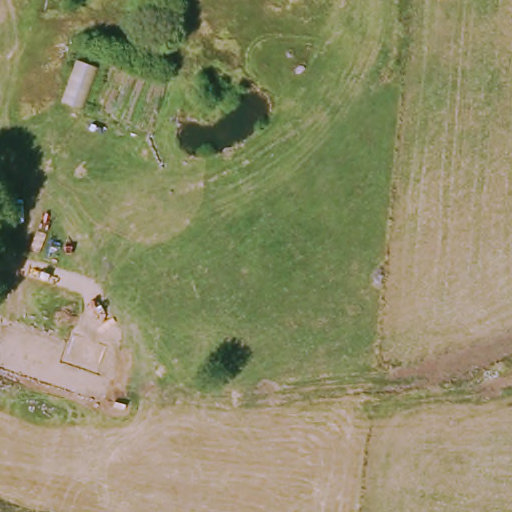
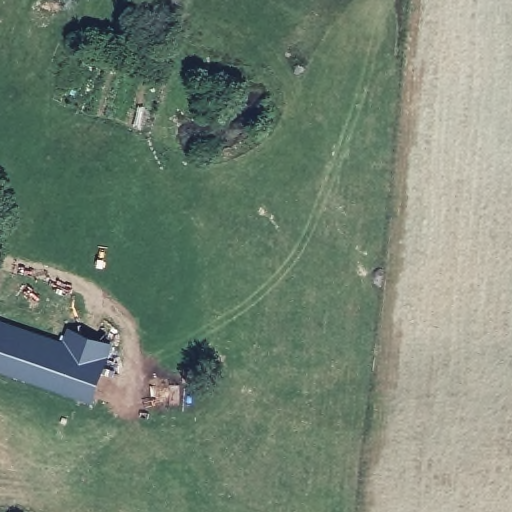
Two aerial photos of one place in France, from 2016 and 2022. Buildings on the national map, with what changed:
new [(113,343),(93,400),(0,371),(0,320),(2,320),(65,340),(70,326),(113,343)]

